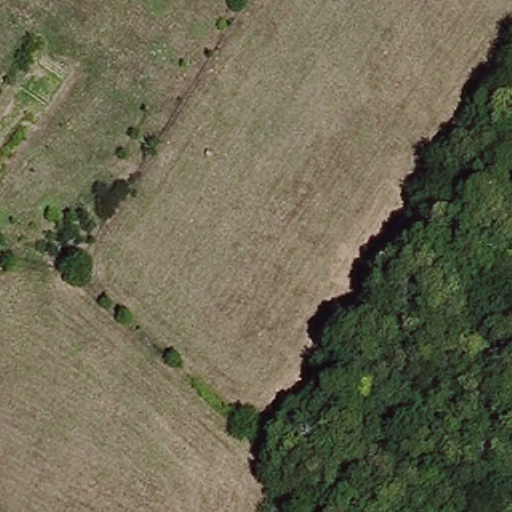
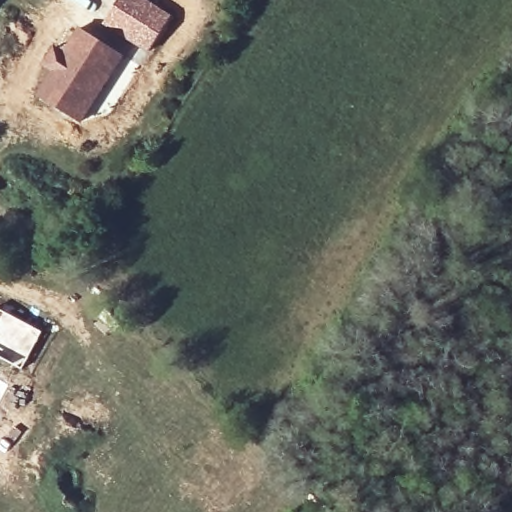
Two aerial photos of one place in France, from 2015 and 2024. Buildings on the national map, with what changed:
new [(117,0),(149,0),(172,15),(147,53),(101,25),(117,0)]
new [(44,76),(38,72),(54,45),(62,50),(77,26),(124,55),(80,124),(32,94),(44,76)]
new [(0,400),(0,378),(9,383),(0,400)]

